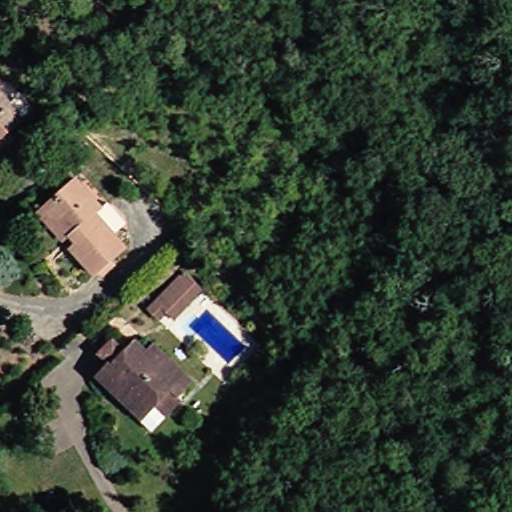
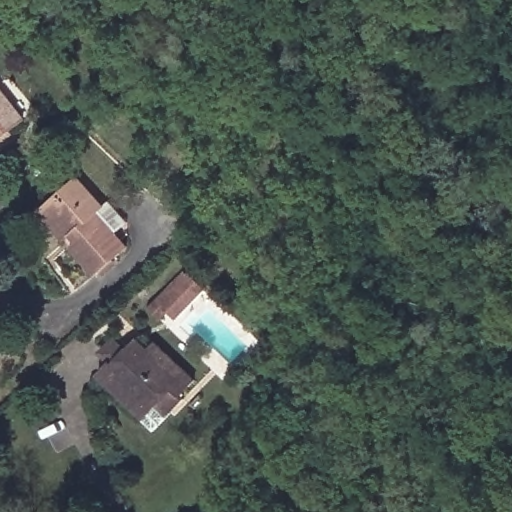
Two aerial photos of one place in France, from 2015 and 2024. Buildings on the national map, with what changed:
unchanged [(233,35),(243,50),(229,59),(219,45),(233,35)]
unchanged [(0,135),(0,65),(33,110),(0,135)]
unchanged [(103,211),(97,215),(125,252),(93,277),(70,250),(82,241),(76,233),(71,237),(64,242),(38,210),(60,194),(79,179),(103,211)]
unchanged [(182,273),(195,287),(168,313),(155,302),(182,273)]
unchanged [(155,428),(145,420),(85,366),(96,354),(103,360),(128,335),(141,344),(149,336),(193,377),(177,394),(182,399),(155,428)]

